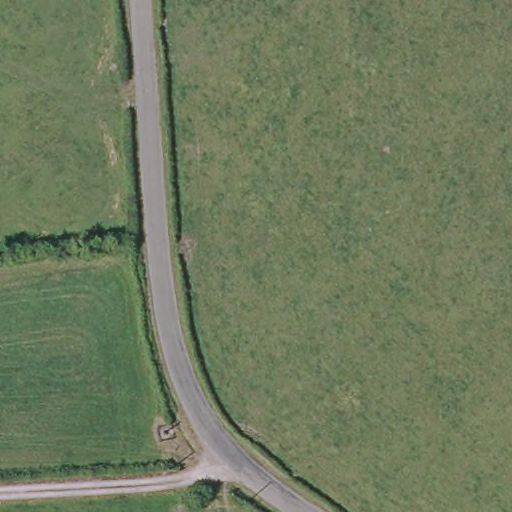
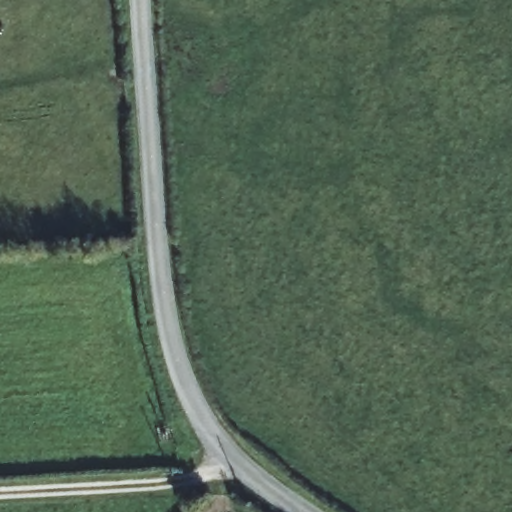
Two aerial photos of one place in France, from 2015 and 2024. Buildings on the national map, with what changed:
[]

